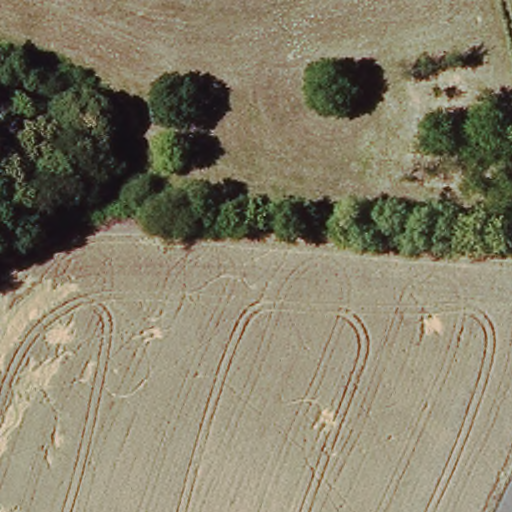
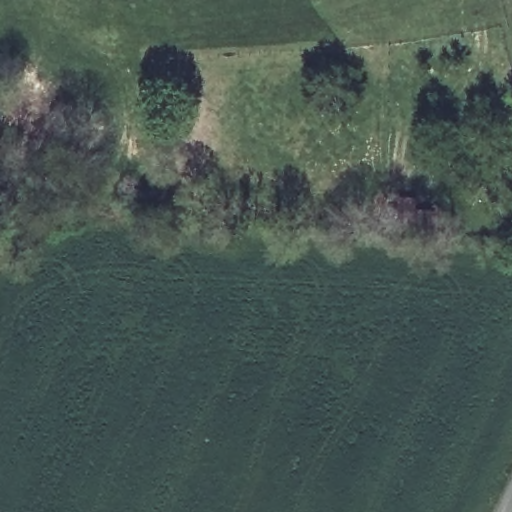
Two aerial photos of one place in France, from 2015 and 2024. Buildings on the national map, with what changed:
unchanged [(461,46),(459,63),(442,61),(444,44),(461,46)]

